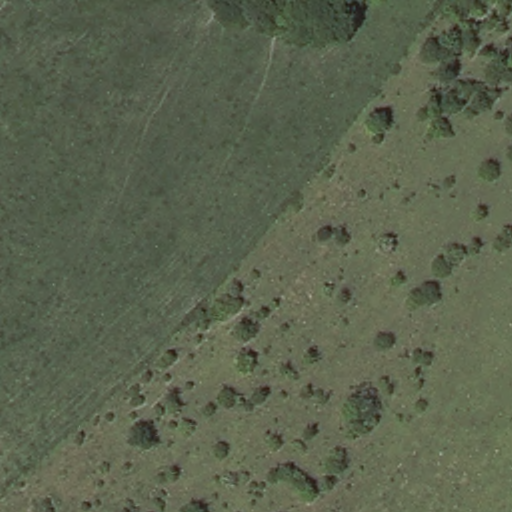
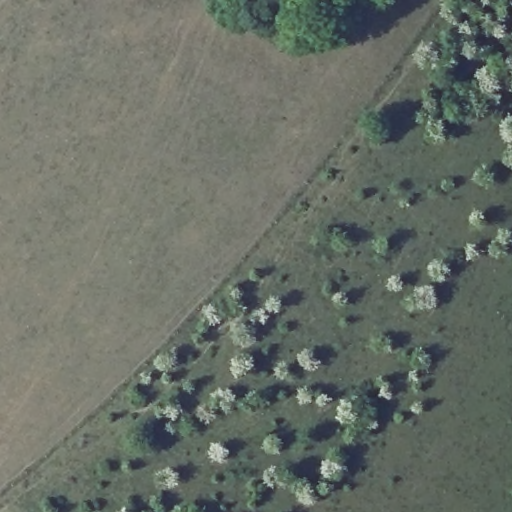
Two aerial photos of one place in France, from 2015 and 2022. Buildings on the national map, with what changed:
[]

